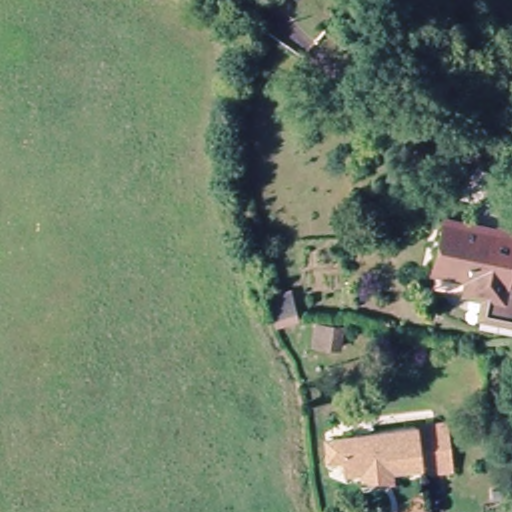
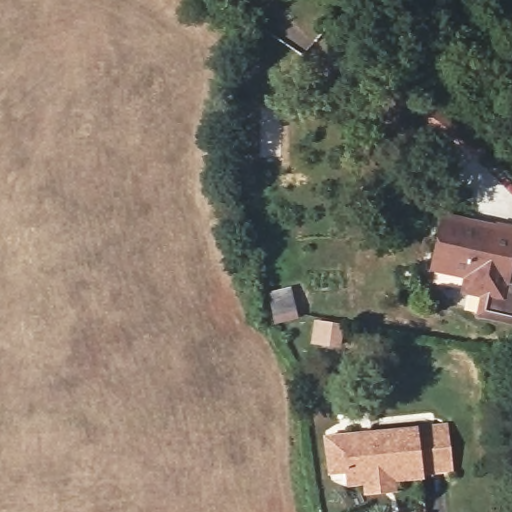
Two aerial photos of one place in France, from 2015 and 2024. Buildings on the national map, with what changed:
unchanged [(452,91),(448,100),(396,64),(402,55),(452,91)]
unchanged [(512,231),(512,275),(511,281),(512,281),(512,325),(479,319),(483,300),(468,296),(471,280),(439,275),(446,219),(512,231)]
unchanged [(357,332),(330,328),(332,308),(360,312),(357,332)]
unchanged [(457,431),(463,472),(433,476),(421,477),(415,435),(422,434),(457,431)]
unchanged [(338,488),(337,478),(320,481),(317,443),(415,432),(415,435),(421,477),(338,488)]

